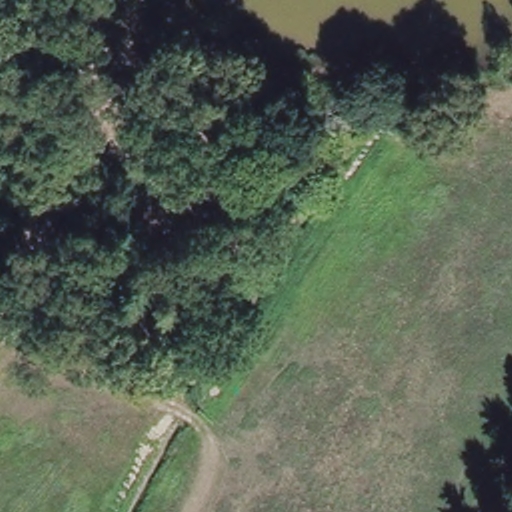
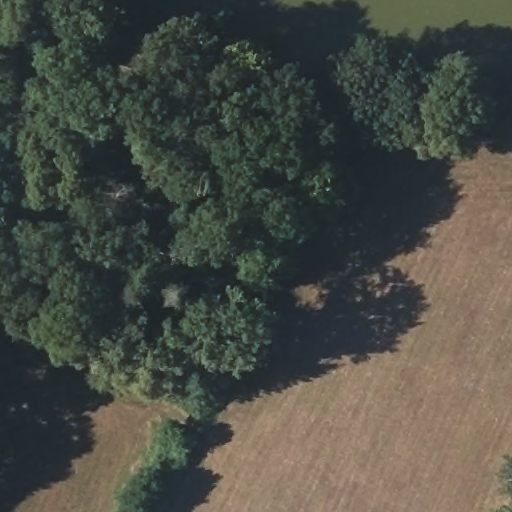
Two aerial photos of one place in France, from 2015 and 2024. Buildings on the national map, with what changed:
[]

